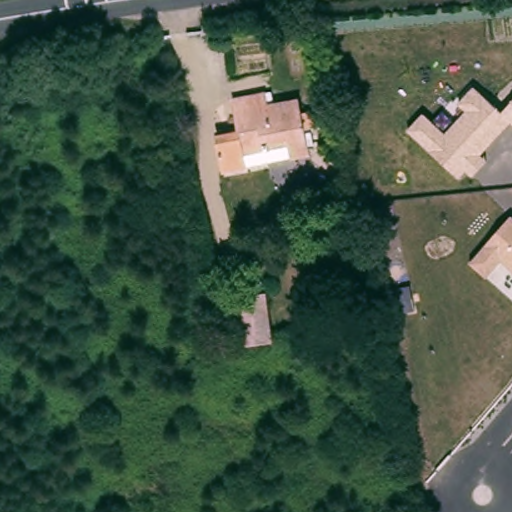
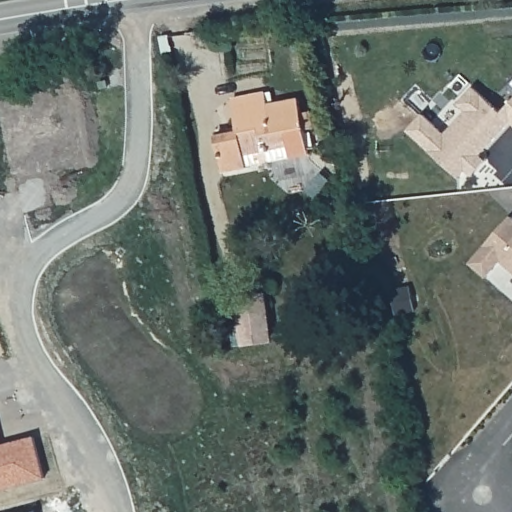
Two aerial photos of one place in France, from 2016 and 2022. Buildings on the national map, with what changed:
unchanged [(407,130),(423,112),(444,133),(466,112),(458,104),(475,85),(502,110),(512,100),(512,122),(460,180),(407,130)]
unchanged [(219,135),(239,129),(234,95),(265,91),(268,101),(300,98),(310,155),(225,175),(219,135)]
unchanged [(489,277),(471,264),(510,212),(512,214),(512,271),(501,262),(489,277)]
unchanged [(238,297),(269,293),(275,342),(243,349),(238,297)]
new [(33,439),(43,479),(0,490),(0,449),(33,439)]

